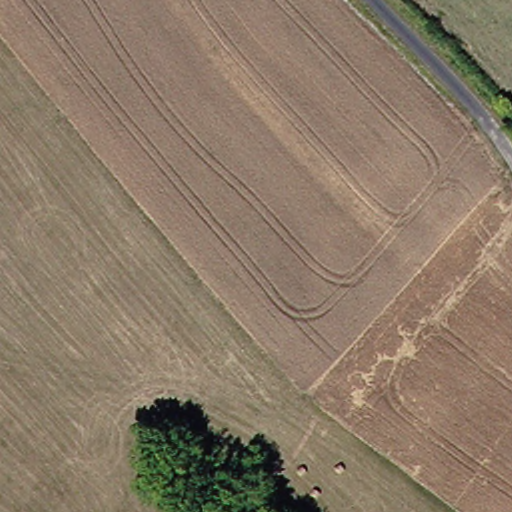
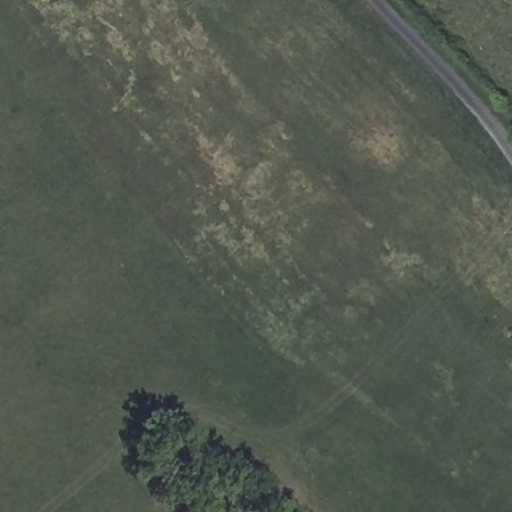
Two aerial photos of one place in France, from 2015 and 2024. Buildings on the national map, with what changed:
[]

